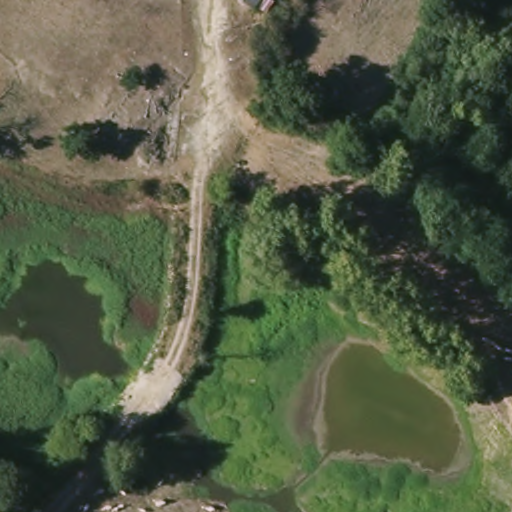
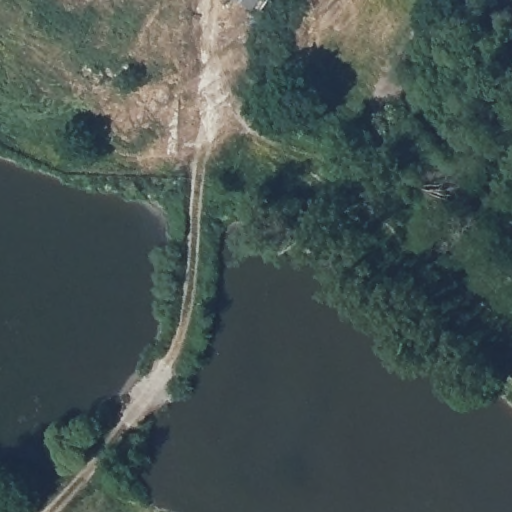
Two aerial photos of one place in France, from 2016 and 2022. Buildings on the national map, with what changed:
unchanged [(240,0),(259,0),(252,9),(240,0)]

